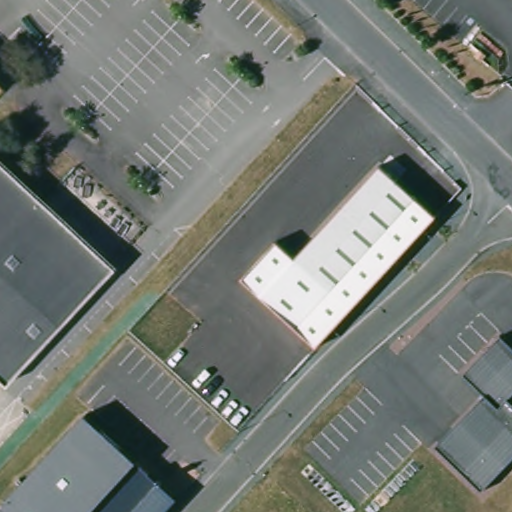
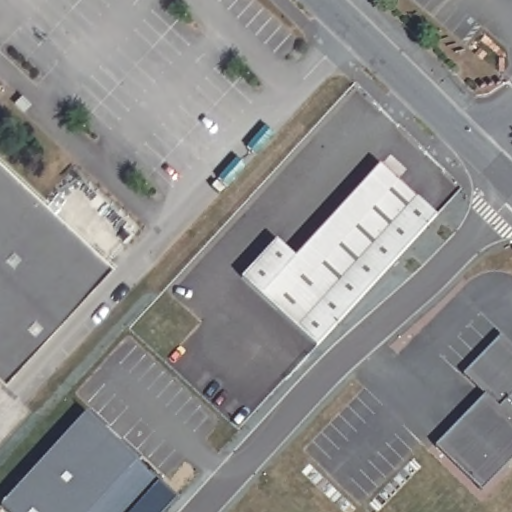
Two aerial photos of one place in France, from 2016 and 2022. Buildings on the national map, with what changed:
unchanged [(0,90),(0,85),(2,87),(0,90)]
unchanged [(1,382),(0,381),(0,162),(111,265),(1,382)]
unchanged [(417,202),(333,295),(296,261),(380,167),(417,202)]
unchanged [(333,295),(366,259),(417,202),(433,216),(316,346),(241,278),(276,242),(296,261),(333,295)]
unchanged [(435,446),(485,395),(462,375),(501,336),(512,346),(512,393),(506,398),(512,404),(512,458),(480,490),(435,446)]
unchanged [(1,506),(85,416),(136,461),(160,482),(133,512),(8,512),(1,506)]

